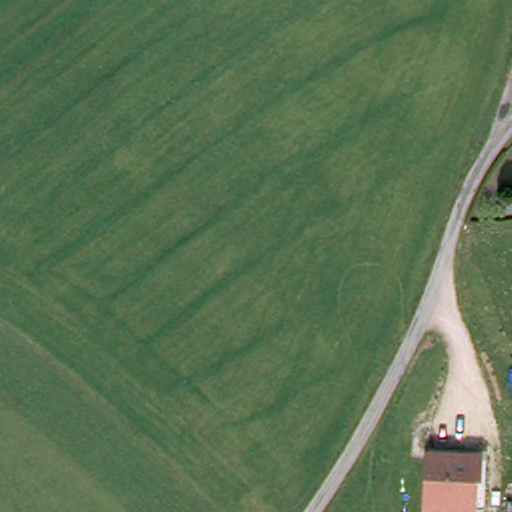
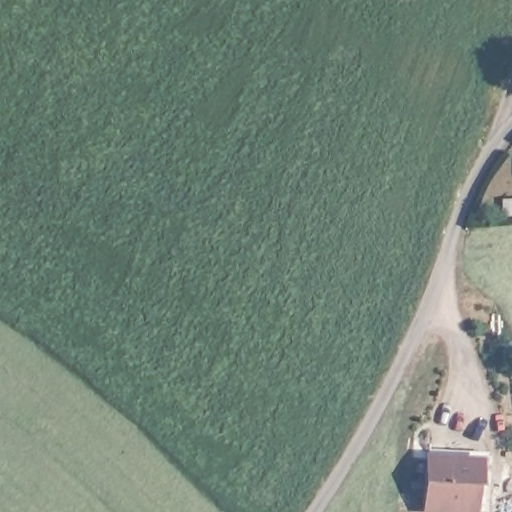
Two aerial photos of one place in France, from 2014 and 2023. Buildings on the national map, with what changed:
unchanged [(512,194),(512,216),(495,217),(495,195),(512,194)]
unchanged [(480,457),(475,512),(424,512),(427,455),(480,457)]

